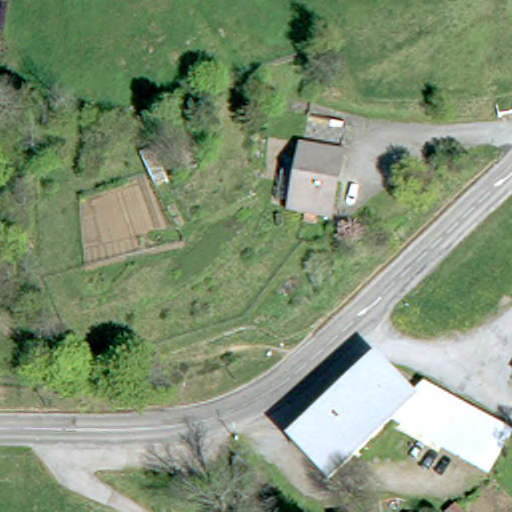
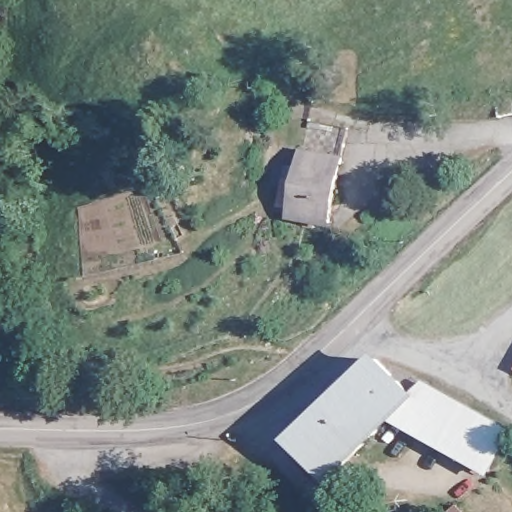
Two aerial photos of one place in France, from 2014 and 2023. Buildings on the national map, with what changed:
unchanged [(484,91),(503,86),(506,107),(489,111),(484,91)]
unchanged [(301,185),(310,134),(348,141),(329,237),(294,232),(295,222),(281,219),(287,182),(301,185)]
unchanged [(391,424),(331,481),(295,443),(377,364),(413,401),(429,388),(510,432),(489,473),(391,424)]
unchanged [(458,504),(466,512),(451,512),(458,504)]

